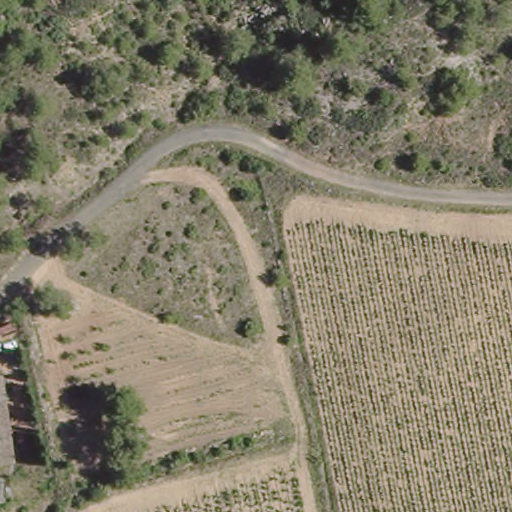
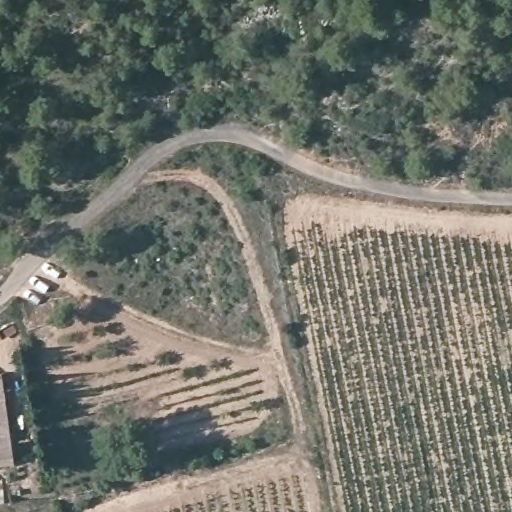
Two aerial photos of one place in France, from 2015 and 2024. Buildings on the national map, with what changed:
unchanged [(17,460),(0,463),(0,374),(1,373),(17,460)]

